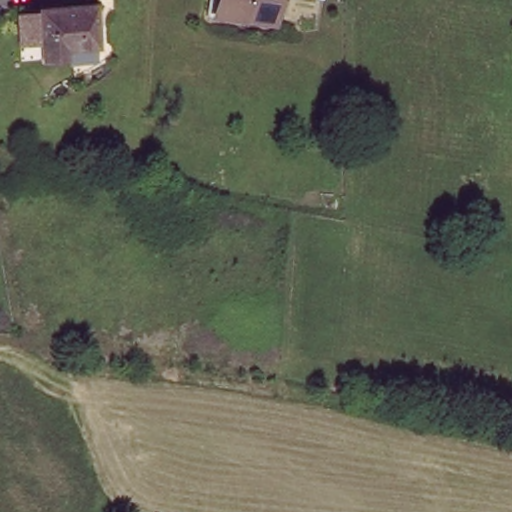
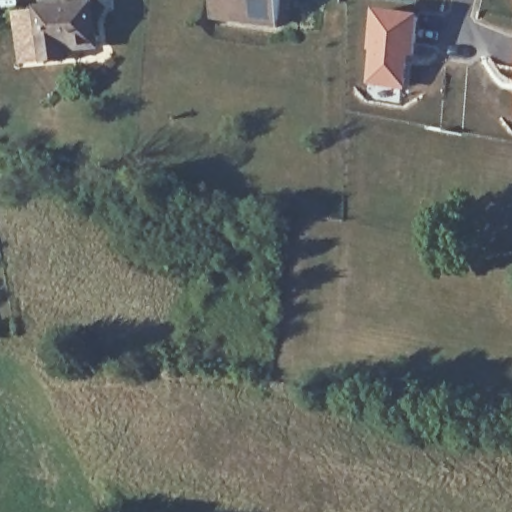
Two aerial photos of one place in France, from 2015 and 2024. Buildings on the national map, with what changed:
unchanged [(216,15),(218,0),(279,0),(276,23),(216,15)]
unchanged [(72,48),(72,54),(51,56),(29,57),(27,11),(48,10),(48,8),(103,4),(105,46),(72,48)]
new [(374,9),(421,15),(415,58),(411,58),(406,90),(365,86),(374,9)]

